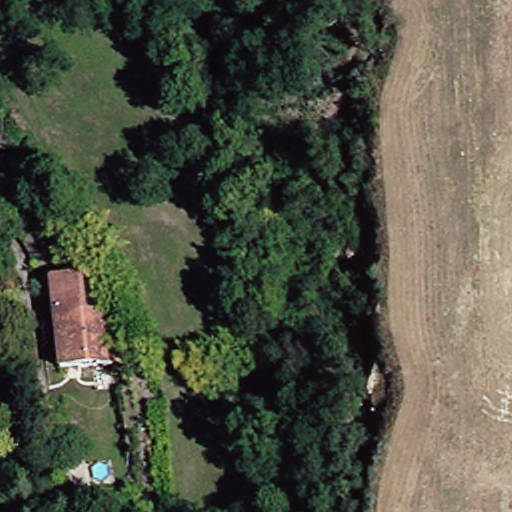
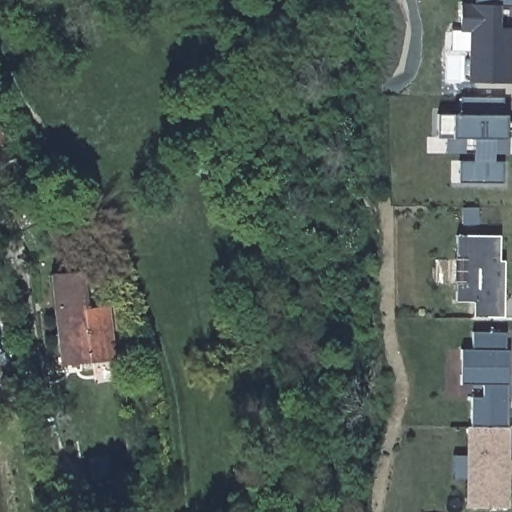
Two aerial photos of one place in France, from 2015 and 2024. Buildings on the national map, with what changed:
new [(476,6),(477,0),(512,0),(512,7),(500,7),(499,30),(512,30),(512,83),(471,82),(472,31),(463,31),(463,6),(476,6)]
new [(472,139),(463,139),(464,153),(445,152),(446,139),(436,139),(436,114),(452,115),(459,114),(461,99),(501,99),(499,116),(506,117),(505,139),(508,141),(507,155),(493,155),(493,162),(502,162),(501,182),(458,182),(458,162),(472,162),(472,139)]
unchanged [(38,202),(60,244),(36,257),(13,215),(38,202)]
unchanged [(454,282),(465,270),(465,261),(455,260),(456,235),(500,235),(500,261),(504,261),(503,316),(472,317),(472,302),(454,300),(454,282)]
unchanged [(86,277),(91,316),(113,313),(118,362),(65,368),(55,281),(86,277)]
new [(508,427),(471,426),(472,396),(483,397),(483,383),(461,383),(462,348),(472,348),(472,332),(507,332),(506,350),(509,350),(509,385),(509,397),(508,427)]
new [(508,427),(509,427),(508,462),(512,462),(512,470),(508,470),(507,507),(467,506),(469,426),(471,426),(508,427)]
unchanged [(2,512),(0,512),(0,486),(2,512)]

